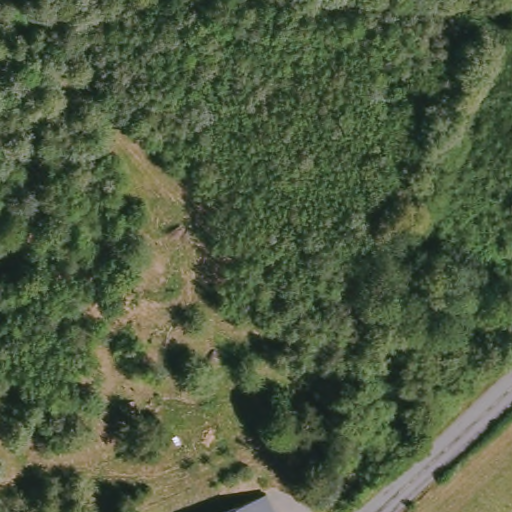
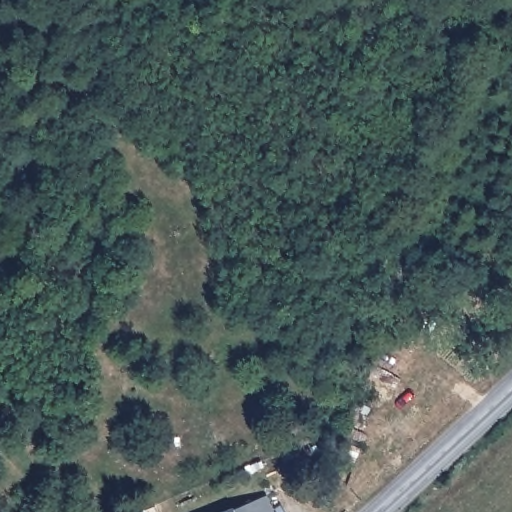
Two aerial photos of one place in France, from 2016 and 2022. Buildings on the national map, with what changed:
unchanged [(277,512),(257,512),(254,507),(244,512),(224,512),(250,499),(266,491),(277,512)]
unchanged [(257,512),(244,512),(254,507),(257,512)]

